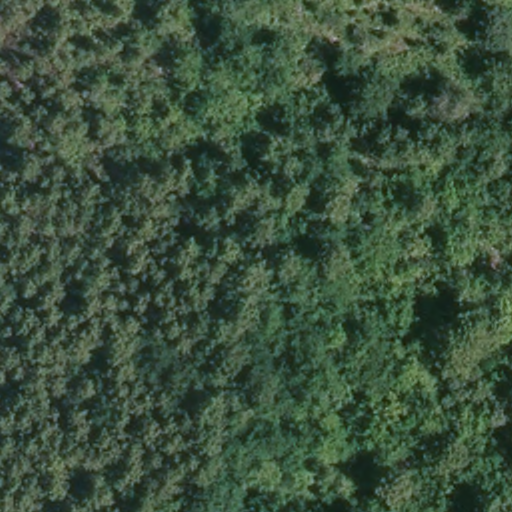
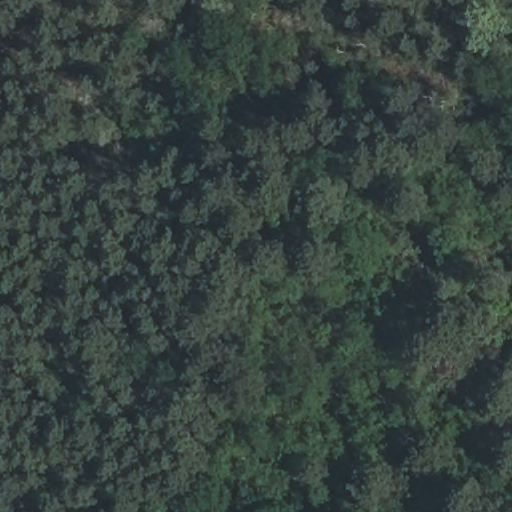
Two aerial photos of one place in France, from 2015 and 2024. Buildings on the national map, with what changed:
[]

